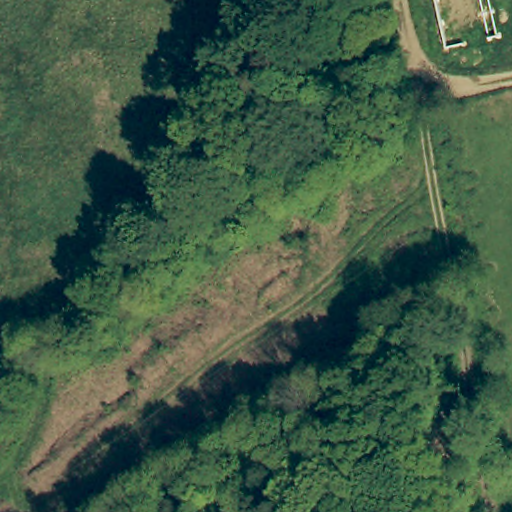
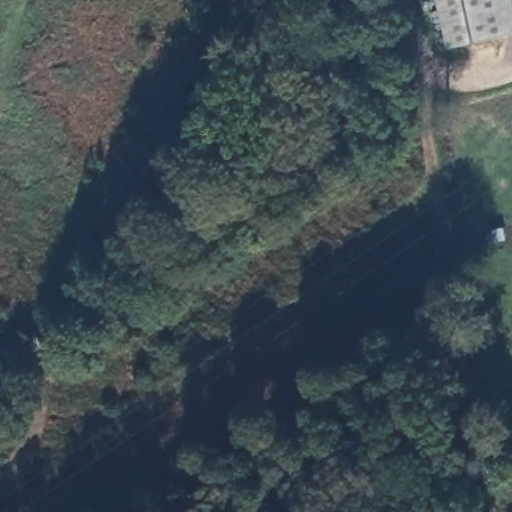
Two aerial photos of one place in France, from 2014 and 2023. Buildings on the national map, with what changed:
new [(447,48),(435,0),(512,0),(512,34),(447,48)]

